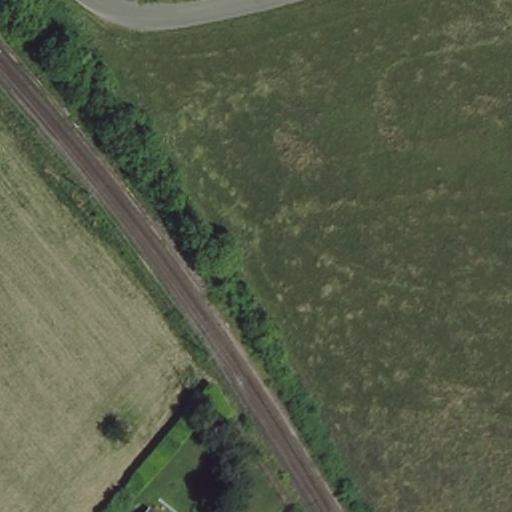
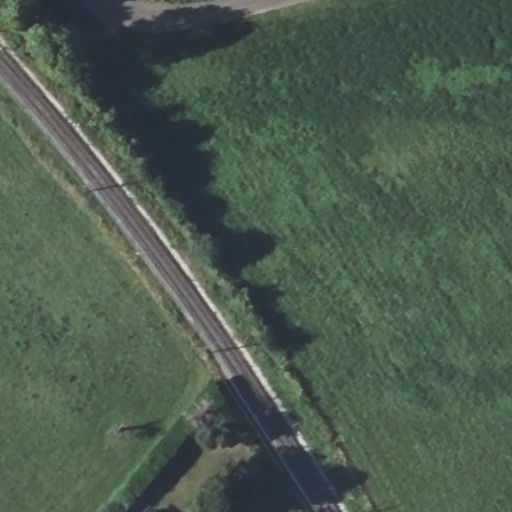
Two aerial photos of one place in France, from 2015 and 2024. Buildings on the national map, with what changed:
unchanged [(157,512),(153,512),(154,510),(157,512)]

